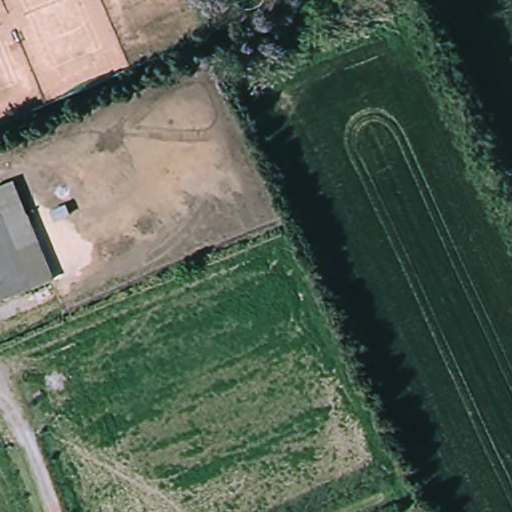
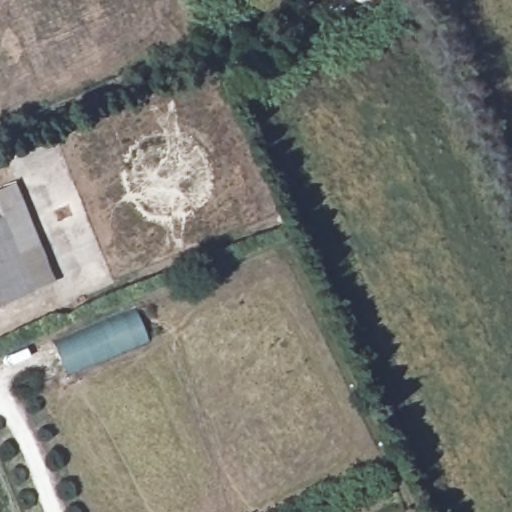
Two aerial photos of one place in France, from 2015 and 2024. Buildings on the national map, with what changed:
unchanged [(14,182),(53,279),(31,288),(0,213),(0,186),(14,182)]
unchanged [(2,220),(32,292),(0,305),(0,220),(2,220)]
new [(137,306),(148,341),(67,375),(54,342),(137,306)]

